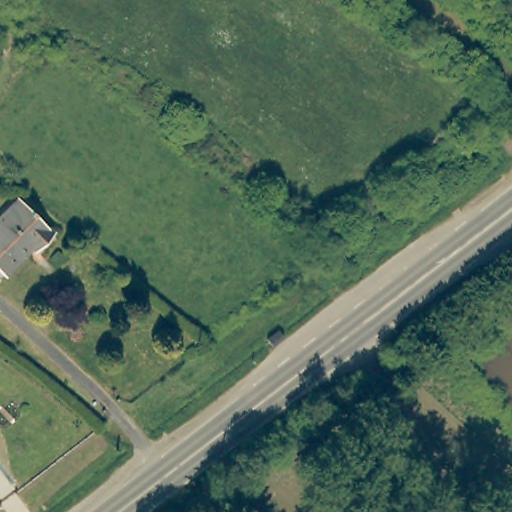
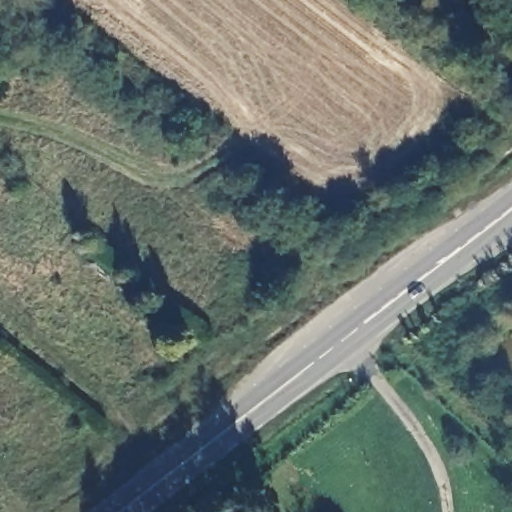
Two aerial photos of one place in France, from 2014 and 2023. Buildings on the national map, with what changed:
demolished [(52,228),(36,244),(34,242),(4,269),(0,266),(0,212),(20,194),(52,228)]

